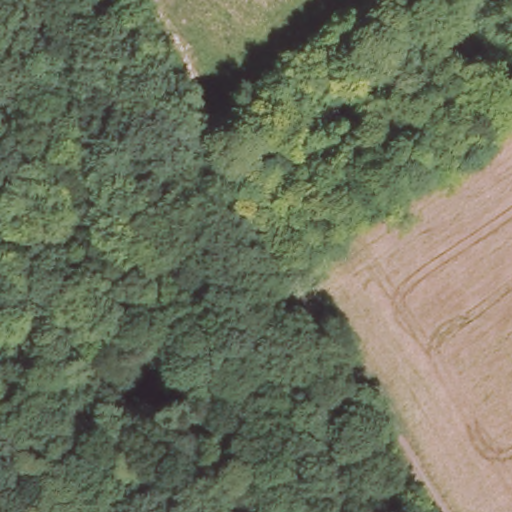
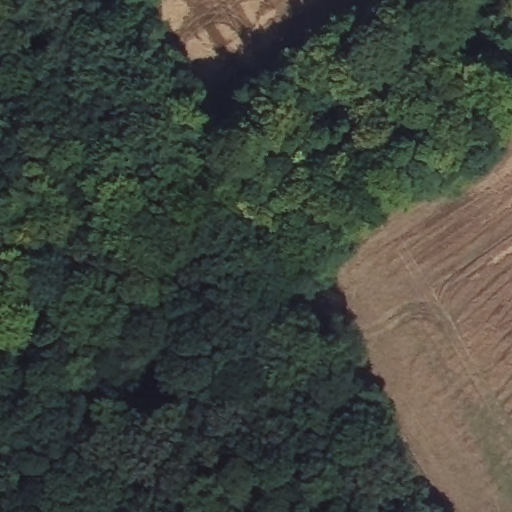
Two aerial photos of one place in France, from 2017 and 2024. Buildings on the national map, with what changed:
unchanged [(332,92),(340,113),(319,134),(304,113),(332,92)]

